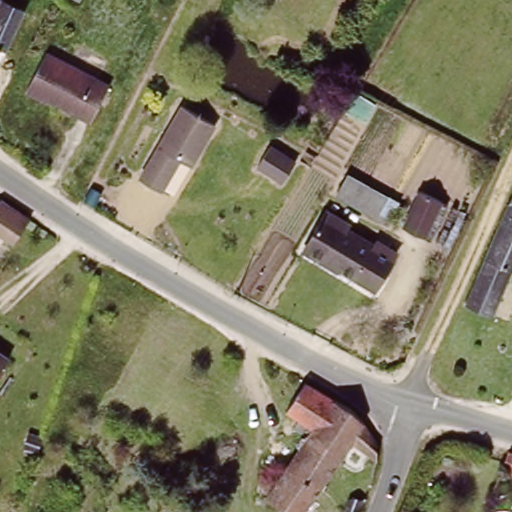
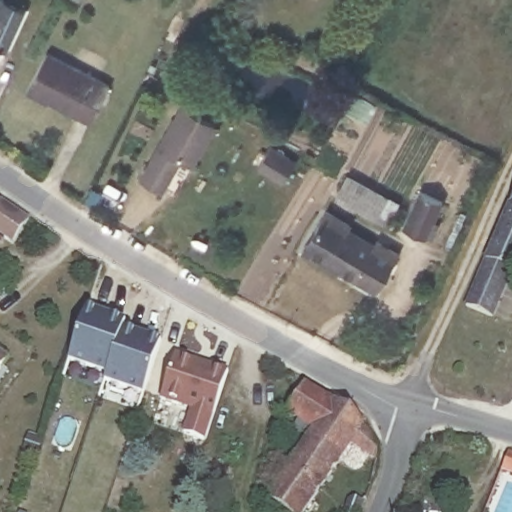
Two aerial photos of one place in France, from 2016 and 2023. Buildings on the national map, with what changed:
unchanged [(4,1),(0,9),(0,0),(2,0),(4,1)]
unchanged [(4,1),(23,11),(0,60),(0,9),(4,1)]
unchanged [(89,122),(48,101),(47,103),(24,91),(44,52),(108,85),(89,122)]
unchanged [(189,161),(179,156),(161,190),(137,178),(175,100),(211,117),(189,161)]
unchanged [(281,183),(257,169),(269,147),(294,162),(281,183)]
unchanged [(381,218),(344,195),(351,181),(390,202),(381,218)]
unchanged [(95,207),(83,201),(91,187),(101,193),(95,207)]
unchanged [(443,200),(438,213),(443,215),(429,242),(403,230),(421,193),(443,200)]
unchanged [(29,218),(10,244),(0,237),(0,200),(1,198),(29,218)]
unchanged [(462,306),(512,200),(512,279),(494,319),(462,306)]
unchanged [(374,291),(339,269),(337,272),(301,250),(326,210),(348,224),(346,228),(375,246),(378,242),(397,254),(374,291)]
new [(84,311),(123,323),(120,332),(158,345),(141,396),(100,382),(103,376),(65,365),(84,311)]
unchanged [(10,358),(0,373),(0,351),(10,358)]
new [(176,354),(226,374),(203,441),(182,434),(189,411),(158,400),(176,354)]
unchanged [(372,481),(363,478),(368,456),(353,445),(305,512),(285,512),(266,497),(309,439),(294,428),(298,420),(286,410),(304,384),(349,410),(376,443),(376,461),(372,481)]
unchanged [(512,479),(502,476),(508,456),(512,458),(512,479)]
unchanged [(340,512),(346,495),(364,502),(360,512),(340,512)]

